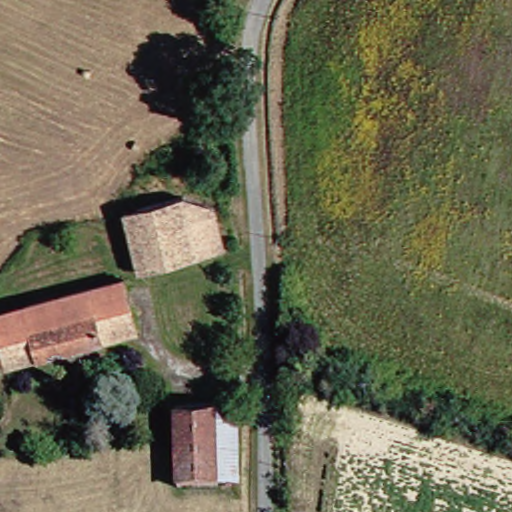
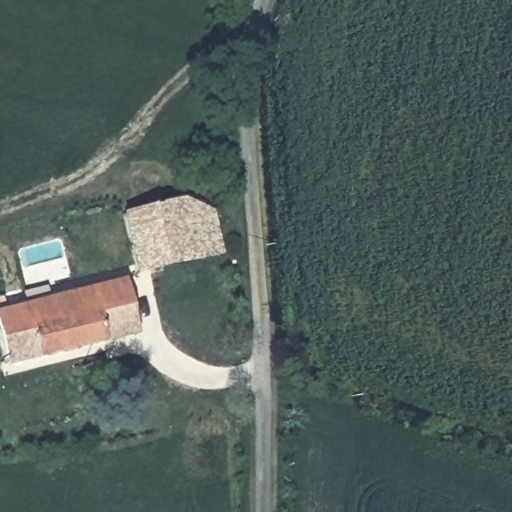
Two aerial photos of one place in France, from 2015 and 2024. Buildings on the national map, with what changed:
unchanged [(200,260),(142,273),(129,217),(188,202),(200,260)]
unchanged [(217,212),(227,254),(200,260),(188,202),(217,212)]
unchanged [(130,286),(144,337),(14,369),(0,317),(130,286)]
unchanged [(0,397),(0,379),(5,396),(0,397)]
demolished [(177,430),(177,402),(217,403),(218,425),(177,430)]
demolished [(219,491),(177,490),(177,430),(218,425),(219,491)]

